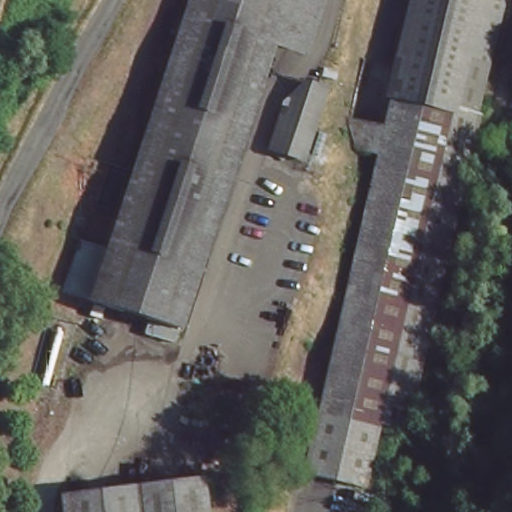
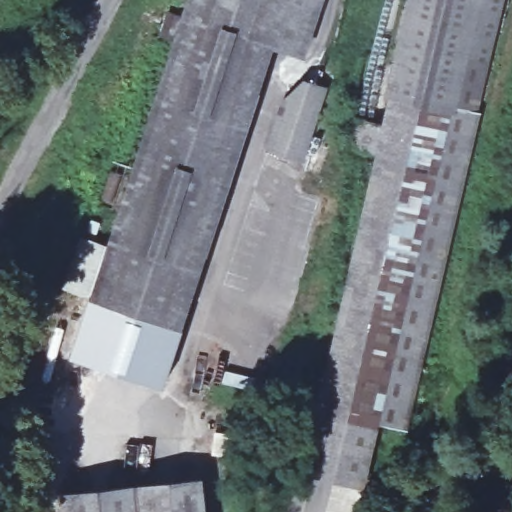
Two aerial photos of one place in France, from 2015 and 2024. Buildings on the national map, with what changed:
unchanged [(108,219),(168,37),(155,34),(163,9),(175,14),(180,0),(317,0),(299,54),(268,45),(235,147),(180,320),(177,326),(88,296),(74,292),(61,287),(78,234),(85,212),(108,219)]
unchanged [(473,108),(476,109),(440,268),(434,290),(402,426),(373,420),(357,487),(296,472),(317,388),(333,311),(352,233),(367,169),(370,150),(350,146),(340,116),(348,84),(353,61),(355,51),(387,59),(402,0),(499,0),(473,108)]
unchanged [(323,85),(300,159),(275,151),(261,147),(278,98),(298,77),(323,85)]
new [(177,326),(180,327),(160,388),(70,360),(88,296),(177,326)]
unchanged [(190,478),(194,512),(52,512),(50,493),(190,478)]

